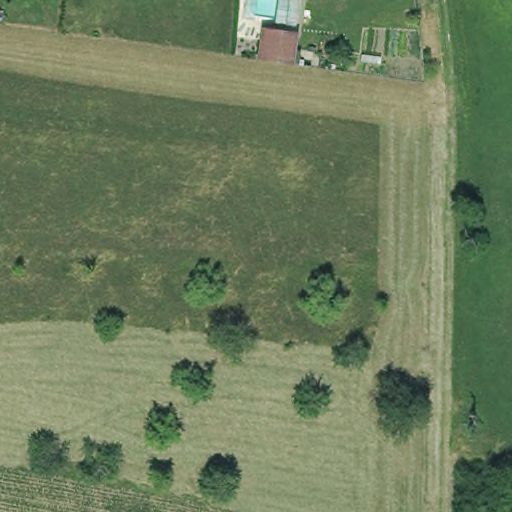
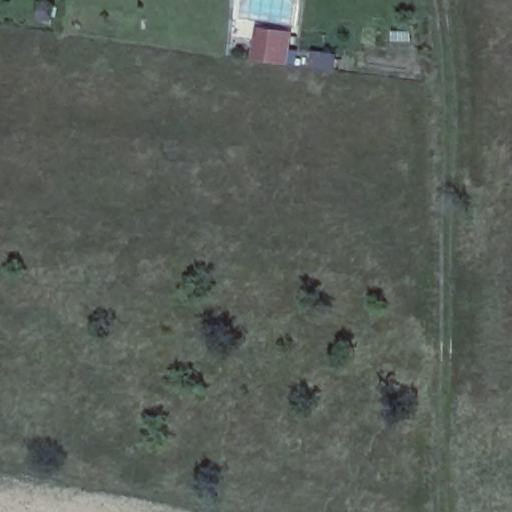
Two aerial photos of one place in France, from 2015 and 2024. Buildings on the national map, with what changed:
unchanged [(293,33),(288,59),(257,53),(262,27),(293,33)]

